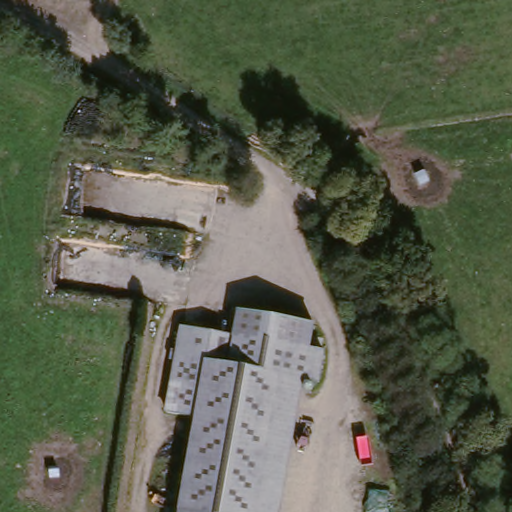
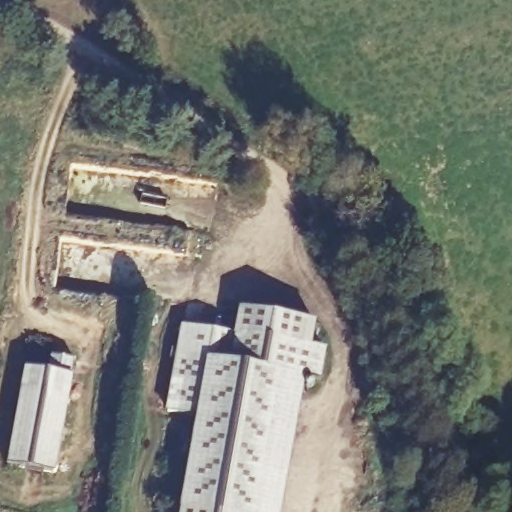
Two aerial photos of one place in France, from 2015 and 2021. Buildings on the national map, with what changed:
unchanged [(176,356),(178,345),(184,347),(189,324),(328,350),(322,380),(306,377),(280,512),(184,512),(203,415),(172,409),(182,358),(176,356)]
new [(46,372),(51,356),(75,360),(74,376),(56,473),(7,465),(25,368),(46,372)]

